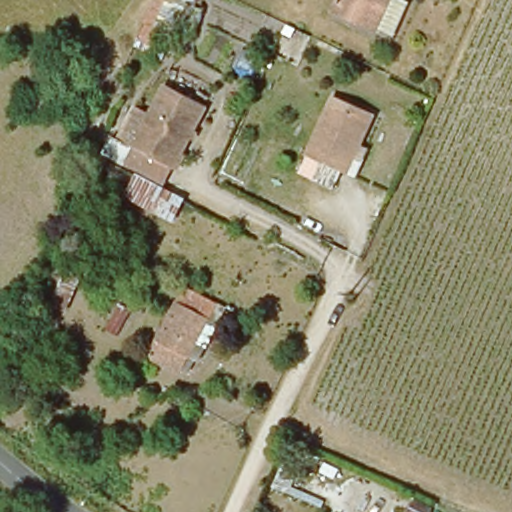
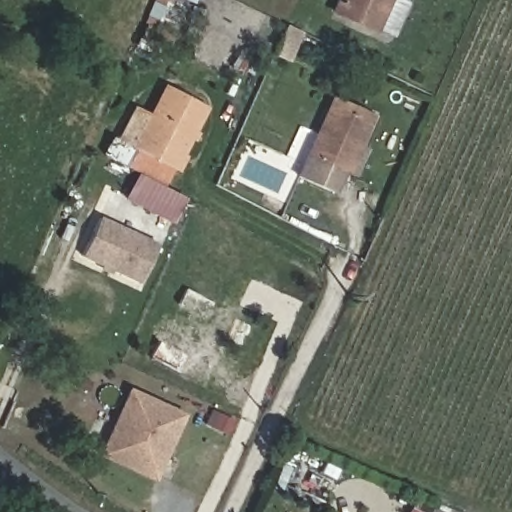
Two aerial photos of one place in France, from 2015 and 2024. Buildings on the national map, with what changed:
unchanged [(170,24),(156,56),(136,44),(157,0),(170,0),(161,18),(170,24)]
unchanged [(182,0),(190,0),(190,1),(182,0)]
unchanged [(376,35),(335,16),(342,0),(393,0),(393,1),(411,10),(395,44),(376,35)]
unchanged [(132,152),(145,129),(167,90),(205,110),(171,175),(132,152)]
unchanged [(340,177),(305,162),(331,104),(371,122),(356,155),(345,180),(340,177)]
unchanged [(145,129),(132,152),(171,175),(164,191),(185,203),(172,225),(122,197),(136,176),(104,151),(126,121),(145,129)]
new [(112,275),(100,269),(102,264),(82,255),(100,216),(159,242),(141,282),(114,271),(112,275)]
unchanged [(181,306),(211,322),(192,361),(162,343),(181,306)]
new [(156,481),(98,455),(130,387),(187,412),(156,481)]

